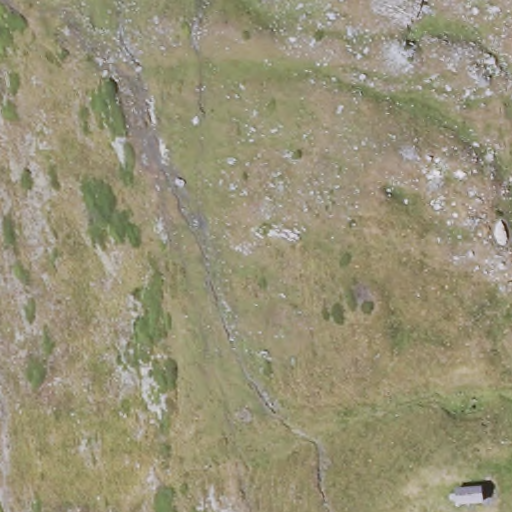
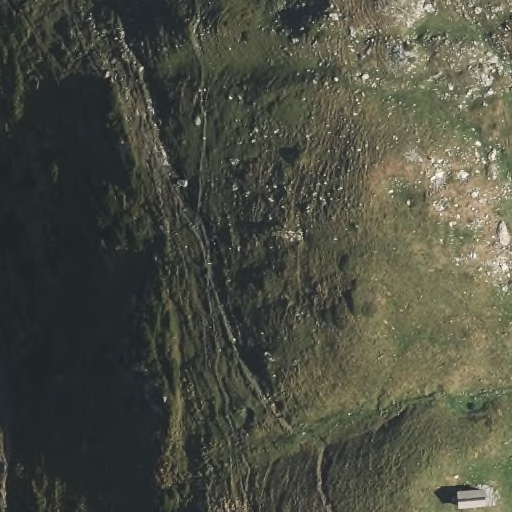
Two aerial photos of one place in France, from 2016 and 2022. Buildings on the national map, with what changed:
unchanged [(459,492),(487,492),(489,511),(459,512),(459,492)]

